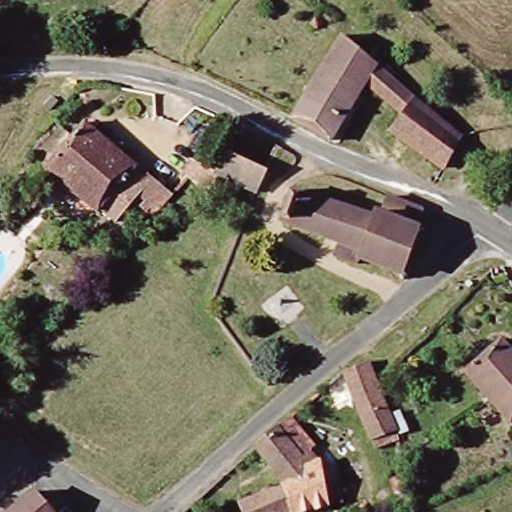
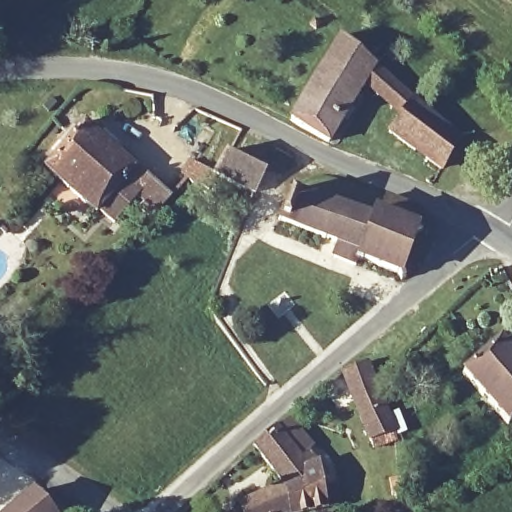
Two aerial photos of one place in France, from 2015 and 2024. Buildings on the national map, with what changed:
unchanged [(461,135),(442,164),(385,128),(397,110),(362,79),(325,138),(287,119),(341,31),(461,135)]
unchanged [(152,176),(175,195),(157,218),(146,209),(150,202),(143,197),(121,224),(105,211),(102,214),(50,172),(59,161),(55,156),(71,136),(75,140),(87,125),(140,167),(138,169),(151,179),(152,176)]
unchanged [(222,175),(214,187),(209,184),(203,180),(200,182),(190,174),(199,160),(220,175),(232,151),(240,155),(249,160),(270,171),(258,194),(256,193),(239,184),(222,175)]
unchanged [(323,201),(325,196),(335,199),(333,205),(363,214),(367,205),(376,208),(381,195),(422,210),(417,220),(427,224),(422,238),(416,236),(400,274),(356,258),(353,264),(328,256),(335,241),(277,220),(287,189),(323,201)]
unchanged [(500,341),(512,355),(512,417),(509,420),(466,370),(500,341)]
unchanged [(371,438),(347,369),(369,361),(376,380),(393,430),(397,438),(373,447),(371,438)]
unchanged [(318,458),(323,481),(335,481),(340,499),(306,507),(284,512),(243,512),(239,499),(283,478),(253,442),(251,439),(273,420),(275,423),(287,414),(311,444),(305,448),(312,458),(318,458)]
unchanged [(385,479),(398,477),(401,488),(388,492),(385,479)]
unchanged [(61,512),(11,512),(36,489),(42,496),(52,497),(65,509),(61,512)]

